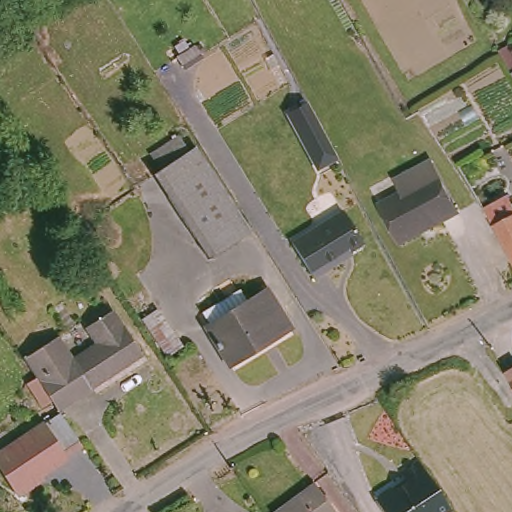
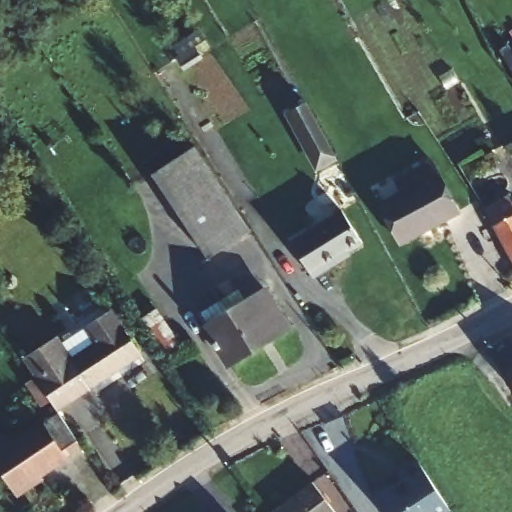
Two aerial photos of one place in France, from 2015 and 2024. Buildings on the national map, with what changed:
unchanged [(340,161),(319,172),(288,114),(308,103),(340,161)]
unchanged [(207,259),(150,175),(194,149),(250,232),(207,259)]
unchanged [(378,195),(400,183),(394,171),(430,151),(457,203),(428,218),(427,215),(418,220),(420,223),(399,234),(378,195)]
unchanged [(482,213),(512,198),(512,264),(494,232),(482,213)]
unchanged [(287,234),(318,213),(337,200),(358,232),(337,245),(336,247),(338,249),(310,268),(287,234)]
unchanged [(263,284),(288,320),(232,359),(228,362),(204,324),(208,322),(263,284)]
unchanged [(140,319),(159,308),(185,348),(168,359),(140,319)]
unchanged [(73,363),(97,347),(87,330),(116,313),(147,357),(62,415),(27,364),(58,343),(73,363)]
unchanged [(512,367),(512,385),(503,372),(512,367)]
unchanged [(86,453),(19,497),(0,467),(0,458),(62,415),(86,453)]
unchanged [(375,495),(423,465),(452,510),(449,512),(386,512),(375,495)]
unchanged [(265,510),(315,476),(341,512),(267,512),(265,510)]

